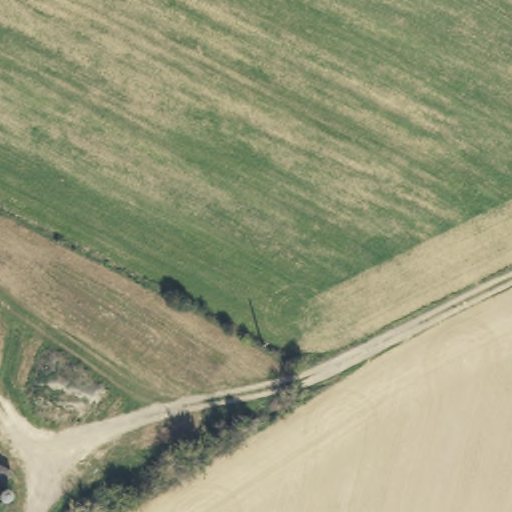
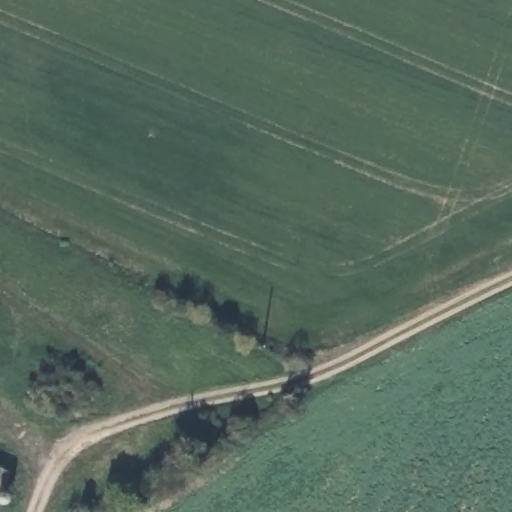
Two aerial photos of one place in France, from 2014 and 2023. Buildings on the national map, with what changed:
unchanged [(0,498),(0,467),(13,473),(0,498)]

